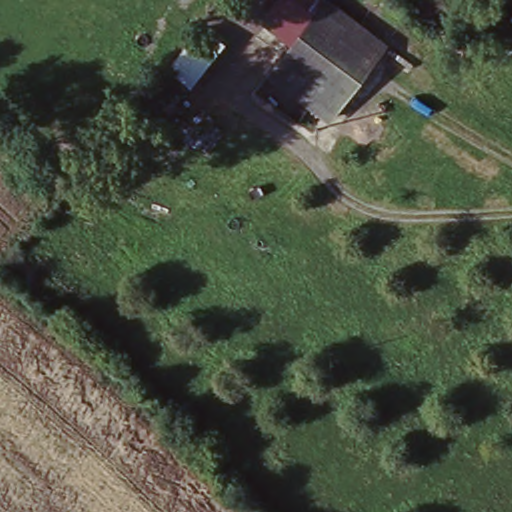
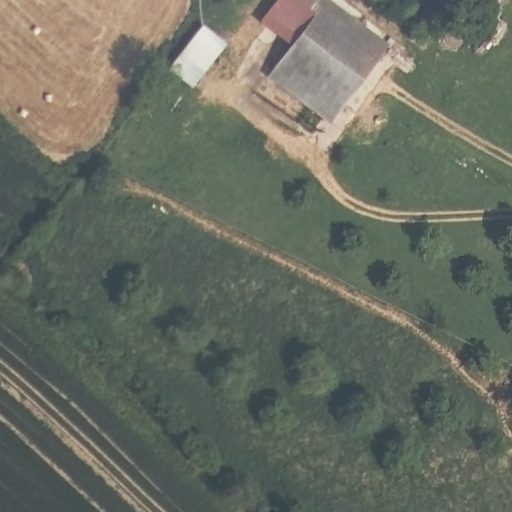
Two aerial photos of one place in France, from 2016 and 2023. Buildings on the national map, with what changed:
unchanged [(269,0),(318,0),(323,4),(291,47),(254,19),(269,0)]
unchanged [(323,4),(385,51),(330,124),(269,77),(323,4)]
unchanged [(169,68),(204,26),(225,44),(191,86),(169,68)]

